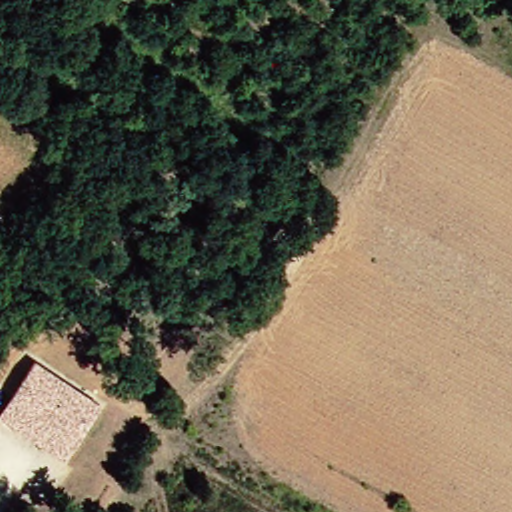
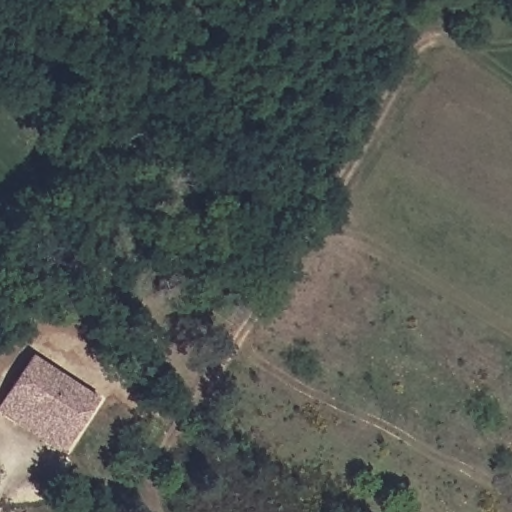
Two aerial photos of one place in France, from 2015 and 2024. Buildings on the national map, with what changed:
unchanged [(19,420),(0,407),(33,358),(99,402),(75,439),(66,451),(19,420)]

